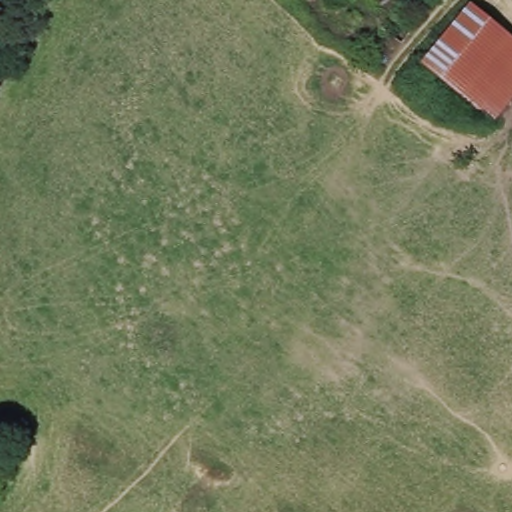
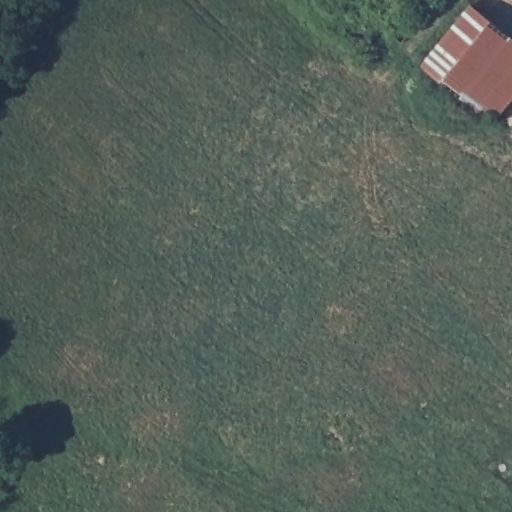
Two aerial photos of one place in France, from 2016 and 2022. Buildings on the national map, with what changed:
unchanged [(473,7),(512,38),(512,94),(508,100),(492,122),(488,119),(424,69),(433,56),(473,7)]

